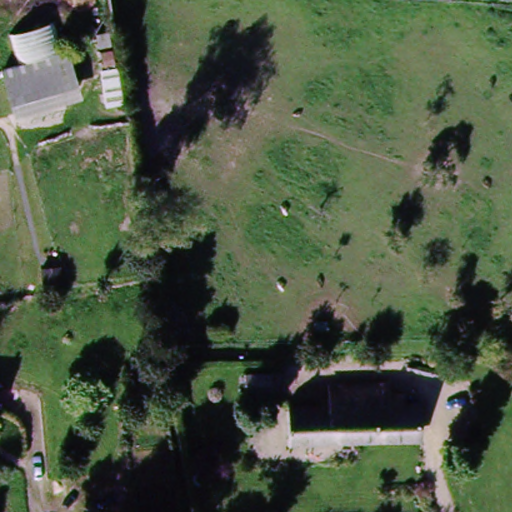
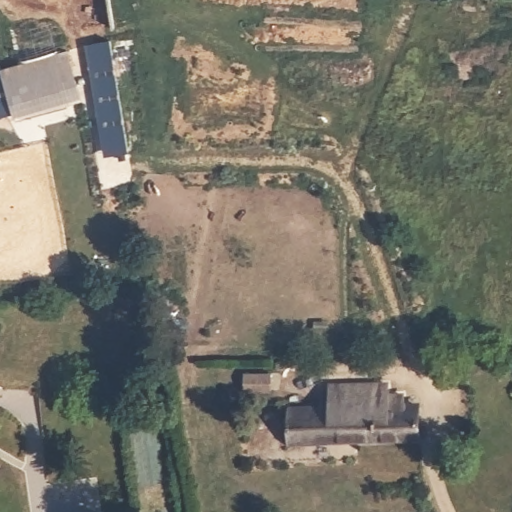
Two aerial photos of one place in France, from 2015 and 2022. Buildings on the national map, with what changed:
unchanged [(62,53),(71,87),(22,102),(10,68),(62,53)]
unchanged [(337,414),(335,390),(380,387),(383,412),(337,414)]
unchanged [(337,414),(383,412),(419,410),(420,439),(286,446),(283,416),(337,414)]

